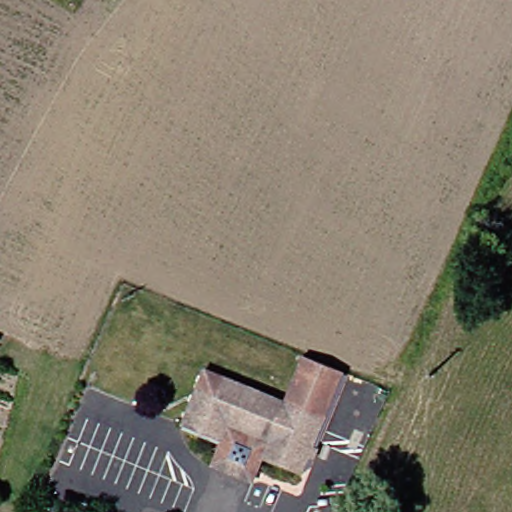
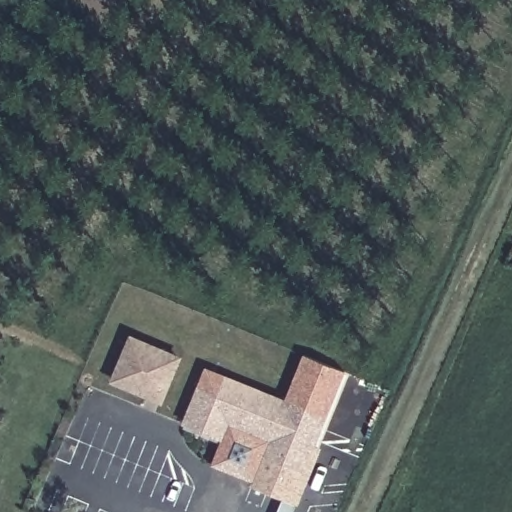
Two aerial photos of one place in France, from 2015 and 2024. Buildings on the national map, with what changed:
new [(182,357),(162,405),(109,382),(129,334),(182,357)]
unchanged [(294,471),(255,454),(261,442),(220,423),(214,436),(176,419),(201,365),(278,400),(301,356),(338,370),(294,471)]
unchanged [(244,478),(204,460),(214,436),(220,423),(261,442),(255,454),(244,478)]

